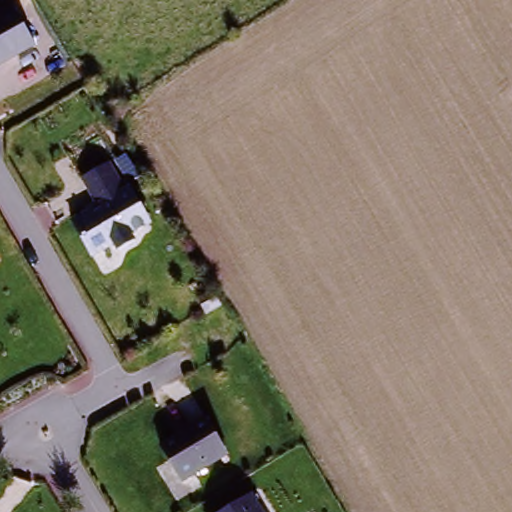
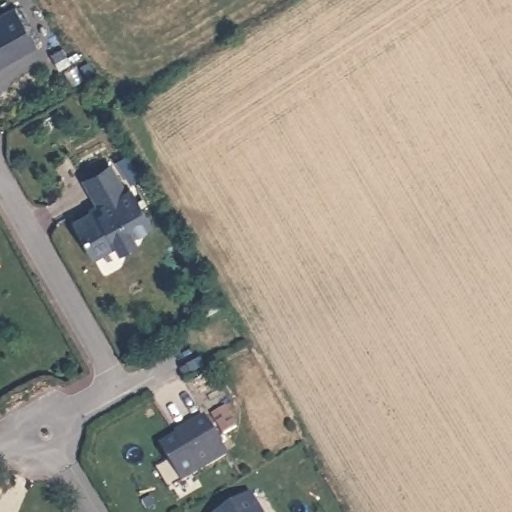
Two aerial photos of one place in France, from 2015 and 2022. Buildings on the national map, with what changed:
unchanged [(10,63),(7,57),(0,61),(0,20),(17,11),(37,48),(10,63)]
unchanged [(127,188),(148,223),(130,234),(133,240),(117,249),(114,244),(92,256),(71,222),(89,211),(96,213),(102,210),(94,197),(82,179),(105,166),(115,185),(120,192),(127,188)]
unchanged [(184,482),(162,449),(193,428),(192,425),(205,417),(228,453),(184,482)]
unchanged [(262,512),(236,512),(255,501),(262,512)]

